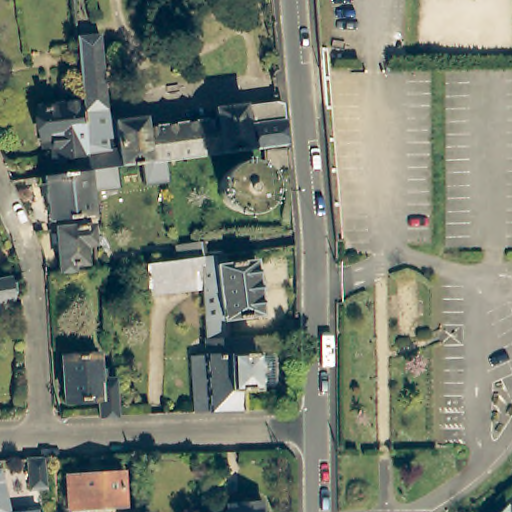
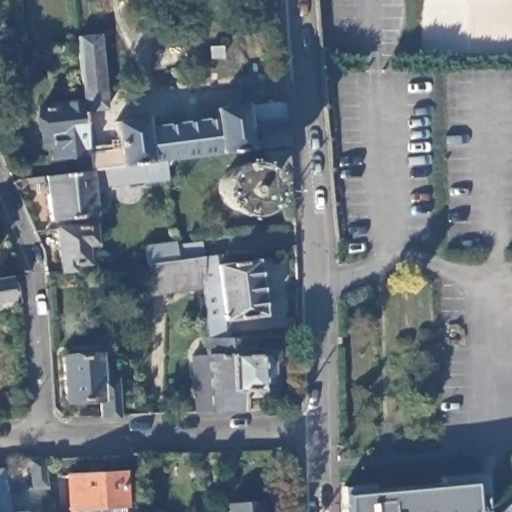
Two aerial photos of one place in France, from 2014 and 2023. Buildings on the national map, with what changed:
unchanged [(86,227),(86,222),(51,225),(45,182),(81,177),(91,176),(84,109),(83,99),(83,91),(78,42),(100,40),(100,47),(106,115),(116,126),(118,126),(146,123),(148,133),(193,127),(201,126),(218,125),(217,115),(247,111),(285,107),(286,126),(289,150),(266,153),(167,165),(114,173),(116,192),(100,195),(89,196),(93,226),(86,227)]
unchanged [(91,176),(81,177),(79,160),(56,163),(54,144),(45,145),(41,114),(84,109),(91,176)]
unchanged [(291,173),(267,175),(266,157),(289,155),(291,173)]
unchanged [(93,231),(94,234),(96,250),(84,251),(86,270),(74,271),(75,277),(62,279),(57,235),(93,231)]
unchanged [(202,296),(148,302),(145,268),(177,265),(175,250),(199,246),(200,261),(200,270),(202,296)]
unchanged [(212,269),(211,260),(228,258),(229,267),(254,264),(257,289),(262,288),(263,302),(258,302),(260,325),(204,330),(202,296),(200,270),(212,269)]
unchanged [(104,324),(114,323),(115,344),(106,345),(104,324)]
unchanged [(190,363),(205,362),(205,347),(251,345),(252,362),(254,361),(254,363),(273,362),(275,395),(256,396),(256,398),(240,398),(240,417),(208,419),(193,420),(190,363)]
unchanged [(101,400),(68,402),(65,358),(100,355),(101,370),(106,369),(105,366),(117,365),(119,378),(121,417),(103,418),(101,400)]
unchanged [(29,465),(46,465),(48,496),(33,496),(29,465)]
unchanged [(0,512),(0,473),(2,473),(9,512),(0,512)]
unchanged [(125,507),(72,511),(69,478),(121,473),(125,507)]
new [(441,487),(438,477),(488,475),(489,512),(344,512),(345,495),(441,487)]
unchanged [(265,497),(266,511),(266,512),(236,512),(235,499),(265,497)]

